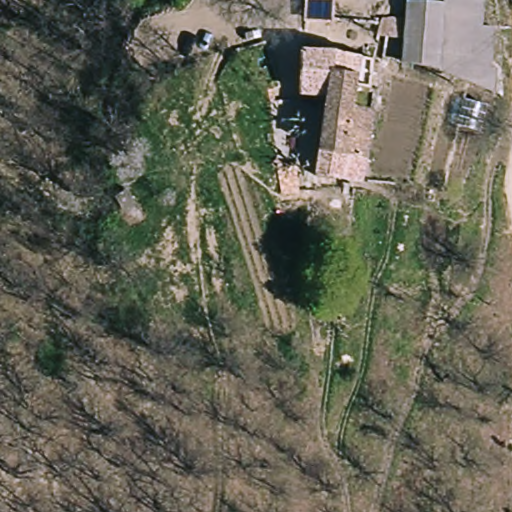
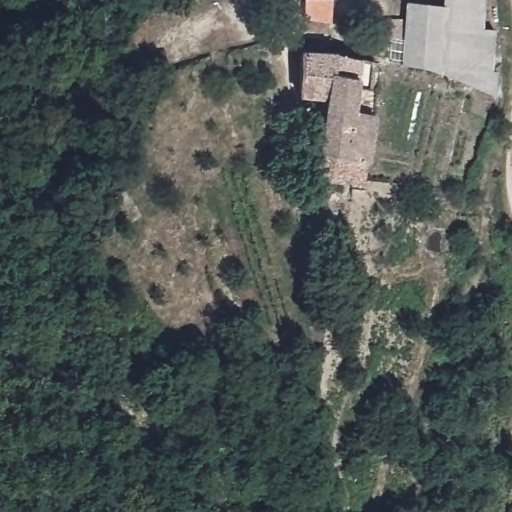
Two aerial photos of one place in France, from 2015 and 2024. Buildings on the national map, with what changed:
unchanged [(446,4),(446,0),(489,0),(487,31),(498,33),(495,93),(445,68),(405,65),(410,3),(446,4)]
unchanged [(322,3),(337,3),(335,21),(313,20),(314,3),(322,3)]
unchanged [(351,115),(373,117),(366,184),(320,178),(325,96),(297,93),(302,50),(373,55),(371,90),(353,89),(351,115)]

